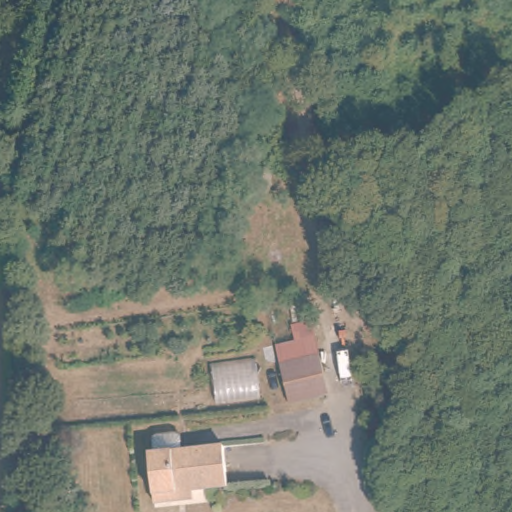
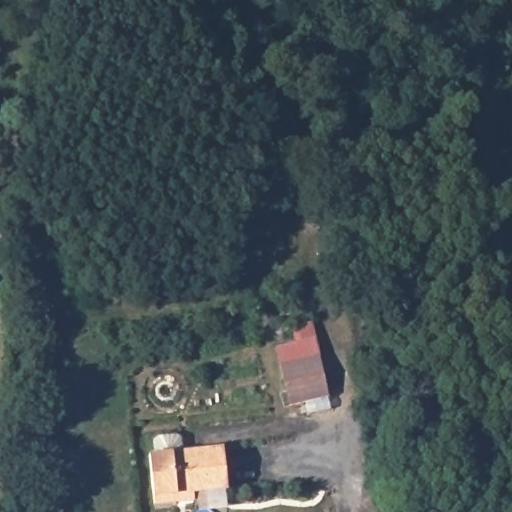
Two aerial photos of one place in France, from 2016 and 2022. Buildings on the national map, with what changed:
unchanged [(275,346),(294,341),(290,328),(315,324),(314,324),(329,395),(287,405),(275,346)]
demolished [(265,404),(219,408),(215,369),(260,363),(265,404)]
unchanged [(230,447),(234,488),(182,493),(183,500),(161,504),(156,454),(230,447)]

